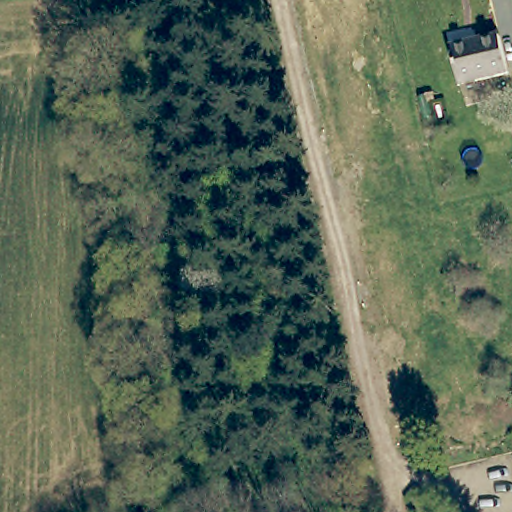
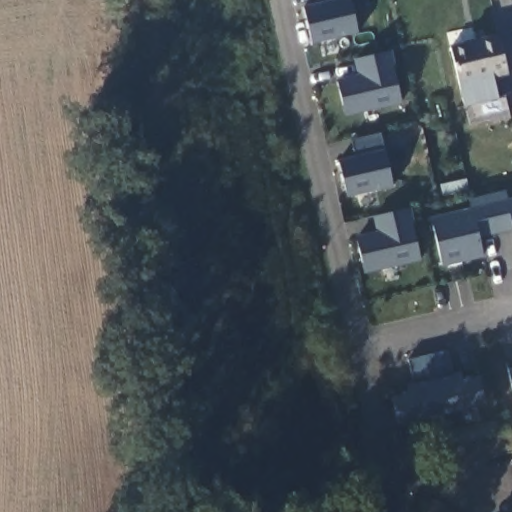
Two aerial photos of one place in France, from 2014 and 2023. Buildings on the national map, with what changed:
new [(312,44),(301,5),(320,1),(320,0),(351,0),(358,33),(312,44)]
unchanged [(510,76),(462,87),(453,51),(501,39),(510,76)]
new [(395,68),(394,68),(402,103),(346,116),(335,79),(357,74),(353,59),(391,50),(395,68)]
new [(380,133),(384,149),(394,187),(347,197),(338,159),(354,155),(350,140),(380,133)]
new [(470,208),(468,199),(505,190),(507,199),(512,197),(512,232),(479,240),(484,257),(443,266),(430,217),(470,208)]
new [(410,208),(414,224),(413,225),(421,260),(365,274),(355,235),(376,230),(372,217),(410,208)]
new [(397,424),(391,397),(408,393),(406,386),(414,383),(407,359),(447,349),(454,374),(461,373),(463,380),(479,376),(485,404),(397,424)]
new [(512,368),(512,387),(507,369),(512,368)]

